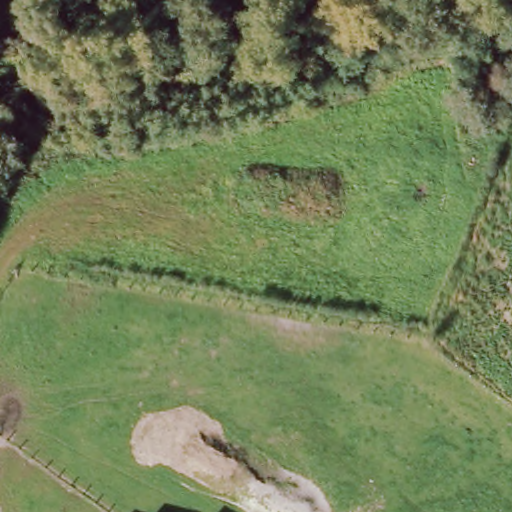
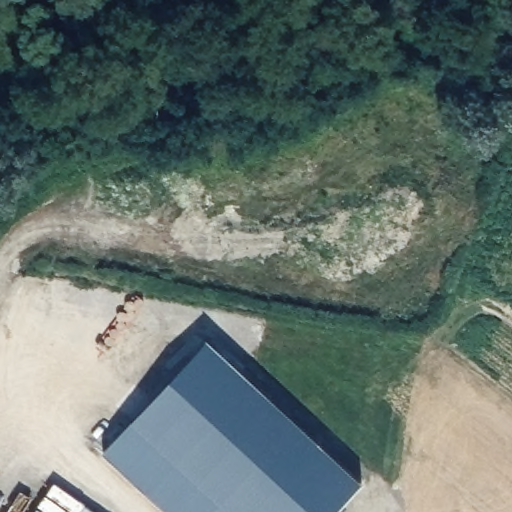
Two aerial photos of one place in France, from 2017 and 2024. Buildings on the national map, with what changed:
new [(207,357),(368,500),(356,512),(177,512),(112,449),(207,357)]

